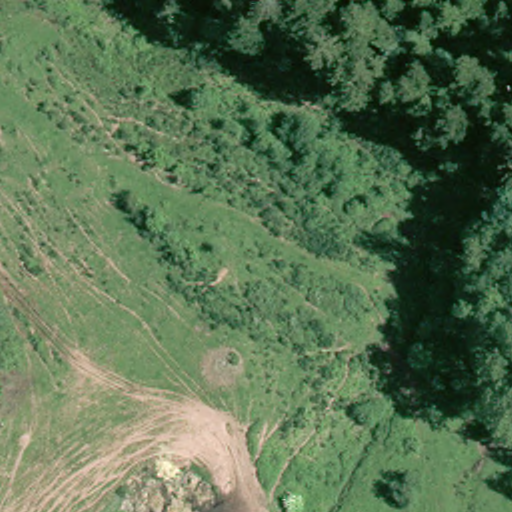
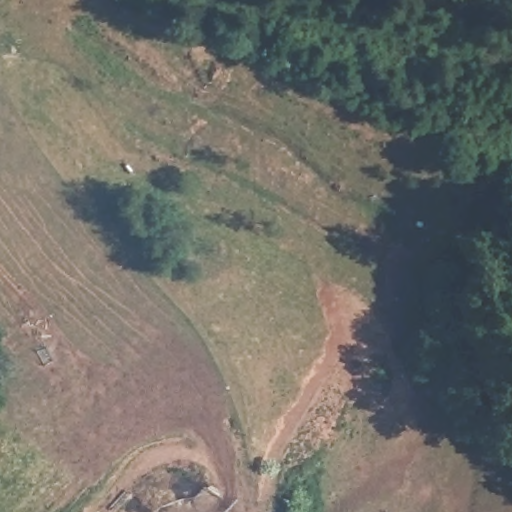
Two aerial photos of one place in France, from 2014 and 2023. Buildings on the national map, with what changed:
[]

